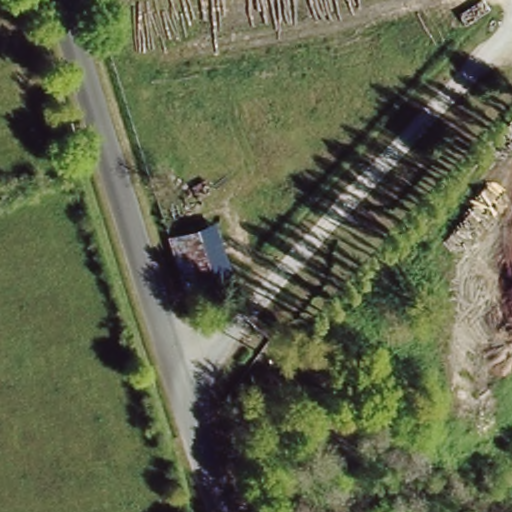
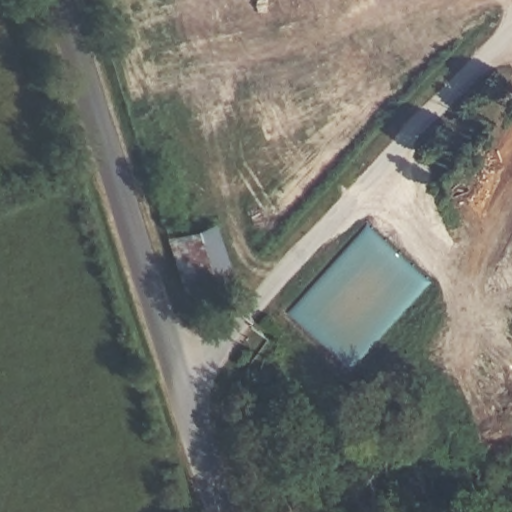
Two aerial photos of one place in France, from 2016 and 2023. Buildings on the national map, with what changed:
unchanged [(221,215),(238,278),(178,295),(177,290),(171,271),(161,232),(221,215)]

